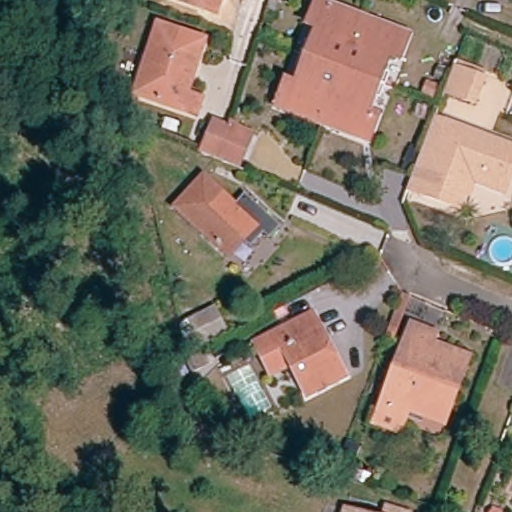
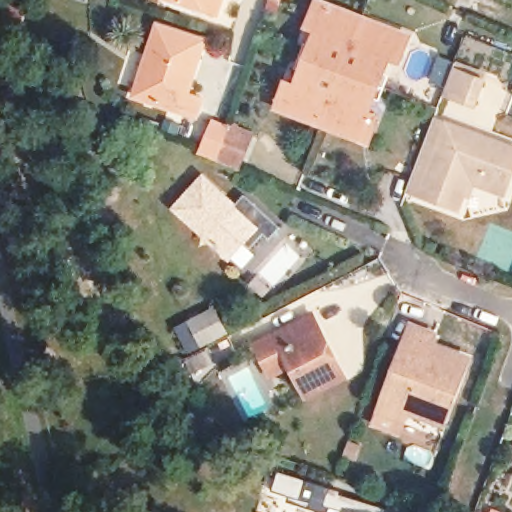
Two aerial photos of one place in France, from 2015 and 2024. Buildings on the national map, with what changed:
unchanged [(215,18),(173,0),(221,0),(224,1),(215,18)]
unchanged [(267,0),(278,0),(276,3),(267,0)]
unchanged [(365,152),(357,149),(270,114),(280,93),(296,56),(302,40),(312,11),(396,45),(398,46),(406,49),(374,130),(368,144),(365,152)]
unchanged [(135,94),(151,53),(144,50),(156,20),(196,38),(179,86),(199,96),(191,116),(135,94)]
unchanged [(446,88),(455,65),(458,58),(488,70),(486,77),(476,101),(446,88)]
unchanged [(431,123),(446,129),(420,199),(403,192),(431,123)]
unchanged [(249,142),(247,177),(218,163),(205,157),(214,132),(215,128),(228,134),(249,142)]
unchanged [(477,182),(465,186),(455,213),(420,199),(446,129),(512,155),(512,160),(500,191),(477,182)]
unchanged [(216,251),(174,212),(201,185),(228,209),(239,199),(265,222),(254,235),(227,262),(216,251)]
unchanged [(218,303),(190,319),(177,295),(206,280),(218,303)]
unchanged [(305,404),(271,336),(315,315),(329,340),(340,360),(350,381),(305,404)]
unchanged [(183,327),(204,317),(211,333),(187,345),(183,327)]
unchanged [(400,421),(380,412),(396,373),(411,333),(434,342),(438,344),(435,352),(467,366),(455,397),(446,419),(441,432),(429,426),(403,415),(400,421)]
unchanged [(385,510),(392,512),(385,512),(385,510)]
unchanged [(344,511),(346,512),(344,512),(344,511)]

